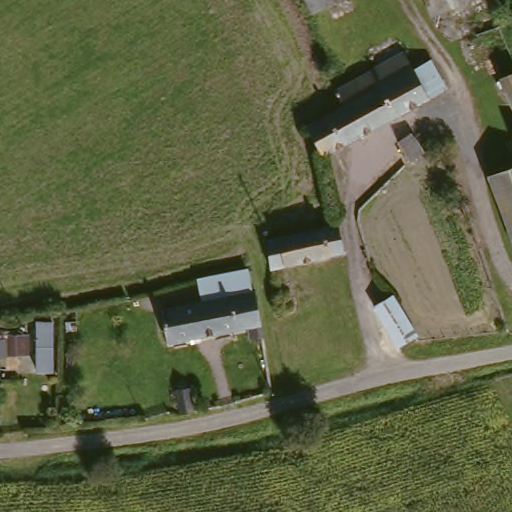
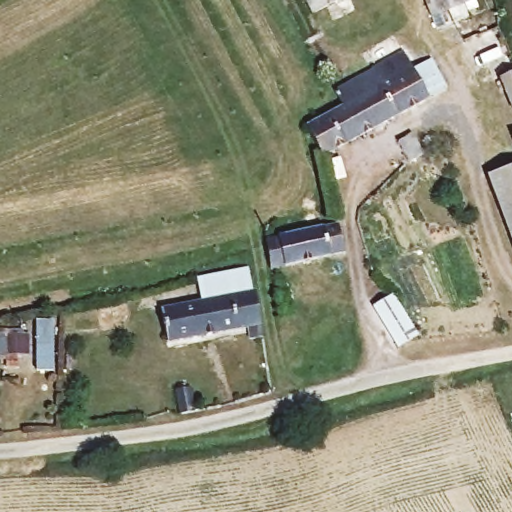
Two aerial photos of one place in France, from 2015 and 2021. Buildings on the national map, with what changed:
unchanged [(306,0),(340,0),(313,14),(306,0)]
unchanged [(423,0),(466,0),(429,14),(423,0)]
unchanged [(343,103),(333,90),(399,51),(412,69),(430,59),(446,89),(325,155),(304,126),(343,103)]
unchanged [(408,136),(421,156),(407,165),(393,145),(408,136)]
unchanged [(490,176),(512,167),(512,238),(490,176)]
unchanged [(270,242),(343,227),(347,255),(274,270),(270,245),(270,242)]
unchanged [(258,328),(170,344),(165,309),(199,301),(198,279),(246,269),(258,328)]
unchanged [(286,298),(288,312),(274,313),(272,299),(286,298)]
unchanged [(392,299),(415,337),(394,348),(372,311),(392,299)]
unchanged [(174,392),(188,390),(191,415),(177,416),(174,392)]

